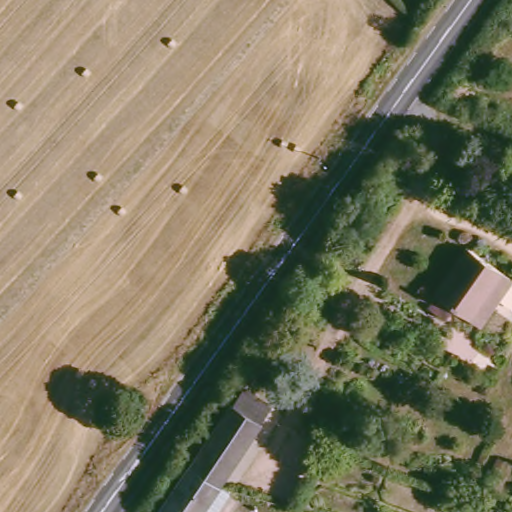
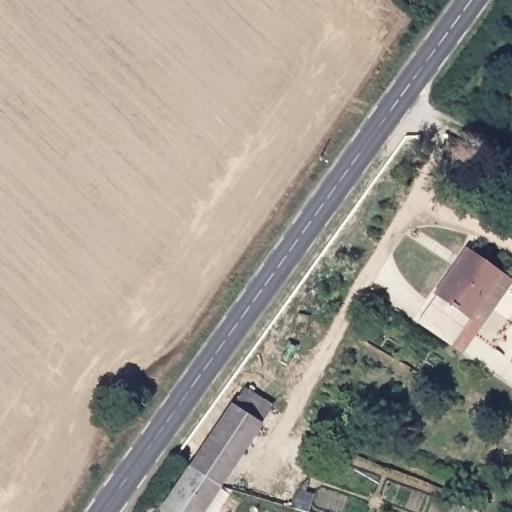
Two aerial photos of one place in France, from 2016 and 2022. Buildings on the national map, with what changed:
unchanged [(502,268),(468,314),(434,291),(468,243),(502,268)]
unchanged [(195,462),(238,400),(268,419),(224,482),(195,462)]
unchanged [(161,512),(195,462),(224,482),(203,512),(161,512)]

